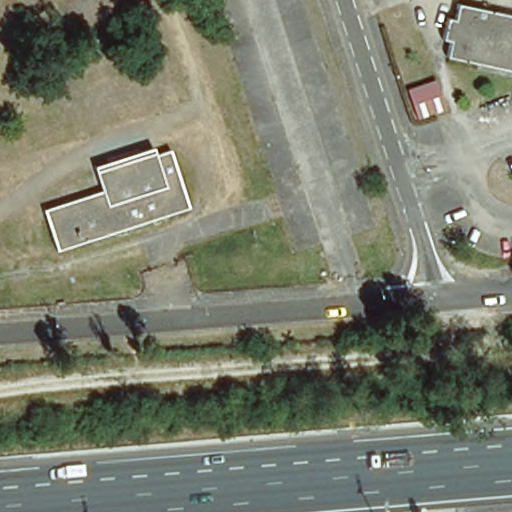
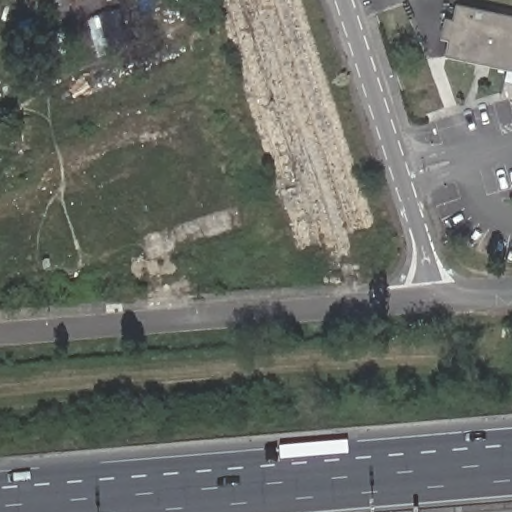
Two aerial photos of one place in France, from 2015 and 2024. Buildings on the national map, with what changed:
unchanged [(449,41),(441,39),(445,18),(454,19),(456,4),(512,16),(512,71),(446,56),(449,41)]
unchanged [(430,81),(440,108),(411,119),(401,90),(430,81)]
demolished [(55,250),(42,210),(100,191),(92,166),(151,148),(153,156),(168,151),(187,208),(55,250)]

